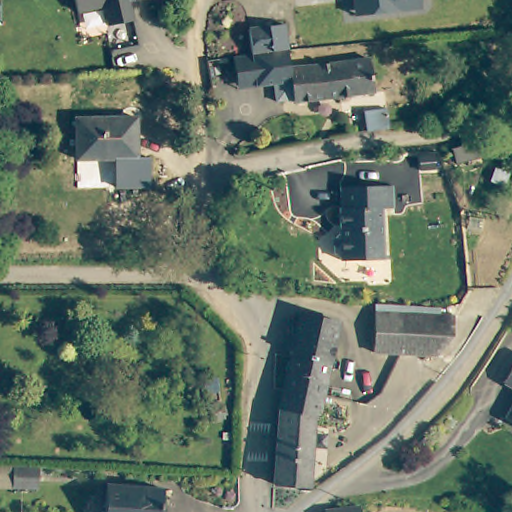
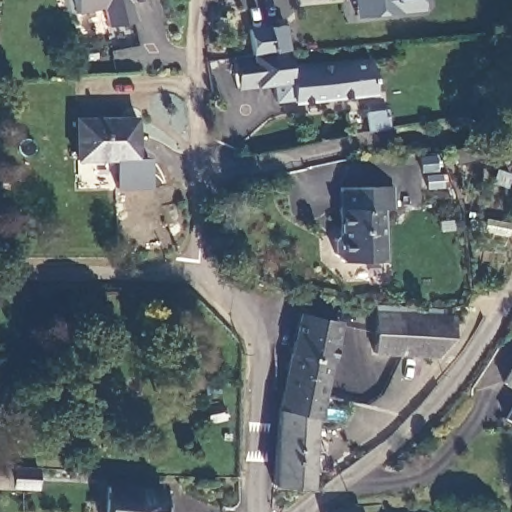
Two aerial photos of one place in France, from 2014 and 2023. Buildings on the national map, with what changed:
unchanged [(134,2),(139,21),(114,26),(110,6),(83,12),(81,0),(144,0),(134,2)]
unchanged [(416,6),(393,9),(393,10),(351,15),(350,0),(415,0),(416,6)]
unchanged [(310,66),(366,59),(369,59),(373,92),(292,102),(292,101),(292,99),(274,101),(274,100),(273,85),(271,85),(255,87),(237,89),(233,57),(247,55),(249,55),(252,55),(248,30),(284,25),(287,50),(289,69),(310,66)]
unchanged [(382,112),(386,131),(363,139),(358,115),(382,112)]
unchanged [(136,121),(136,157),(79,156),(79,120),(136,121)]
unchanged [(345,185),(397,186),(396,210),(388,209),(387,260),(337,258),(331,235),(339,232),(345,185)]
unchanged [(275,484),(277,411),(282,386),(294,315),(334,321),(321,395),(318,412),(313,412),(313,484),(275,484)]
unchanged [(378,315),(403,316),(454,317),(454,352),(403,351),(377,350),(378,315)]
unchanged [(508,384),(512,376),(512,387),(508,384)]
unchanged [(246,398),(246,406),(247,415),(212,417),(210,400),(246,398)]
unchanged [(509,420),(512,414),(512,421),(509,420)]
unchanged [(18,490),(0,490),(0,471),(19,471),(18,490)]
unchanged [(161,490),(162,512),(106,512),(106,488),(161,490)]

